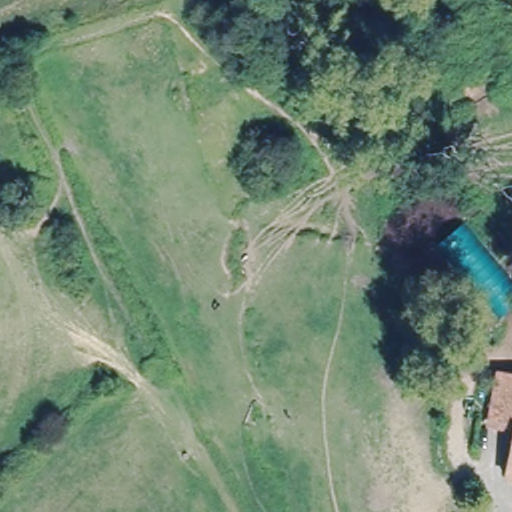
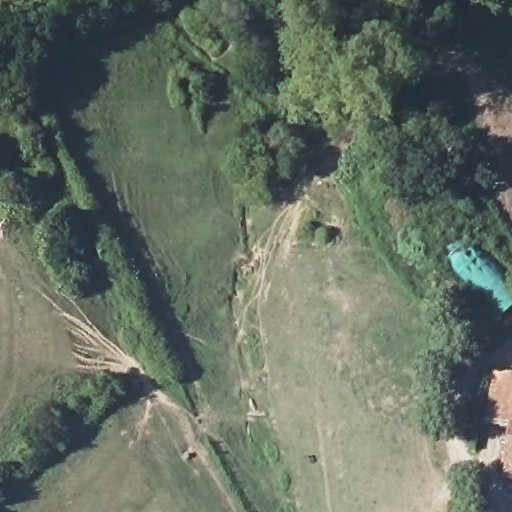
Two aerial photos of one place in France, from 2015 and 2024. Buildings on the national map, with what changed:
unchanged [(504,474),(511,424),(500,422),(488,420),(492,398),(496,369),(512,372),(512,475),(504,474)]

